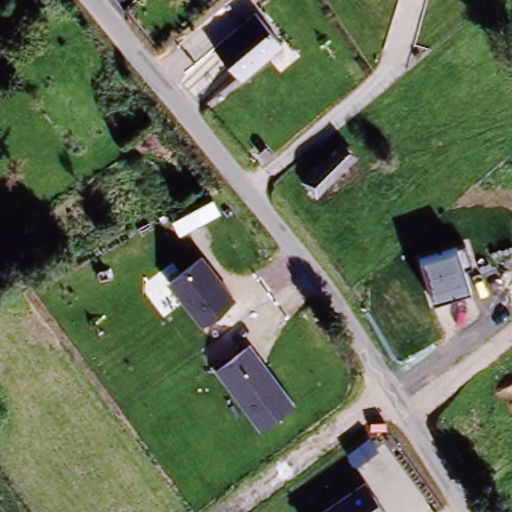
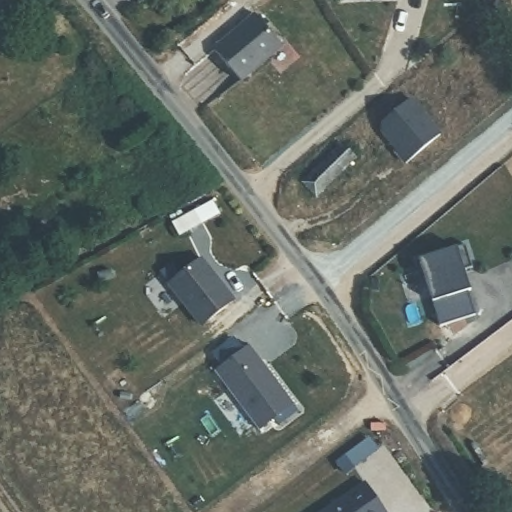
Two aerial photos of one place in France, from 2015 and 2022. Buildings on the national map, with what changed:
unchanged [(253,13),(281,47),(241,82),(212,48),(253,13)]
new [(412,101),(440,138),(403,165),(393,151),(395,149),(380,129),(382,123),(412,101)]
unchanged [(338,150),(347,163),(306,191),(298,177),(338,150)]
new [(214,202),(220,213),(179,241),(173,226),(214,202)]
unchanged [(455,247),(467,244),(473,266),(465,268),(471,291),(434,300),(420,258),(455,247)]
unchanged [(235,300),(200,327),(165,284),(201,257),(235,300)]
unchanged [(295,404),(259,432),(213,371),(250,344),(295,404)]
unchanged [(385,512),(319,512),(364,482),(385,512)]

